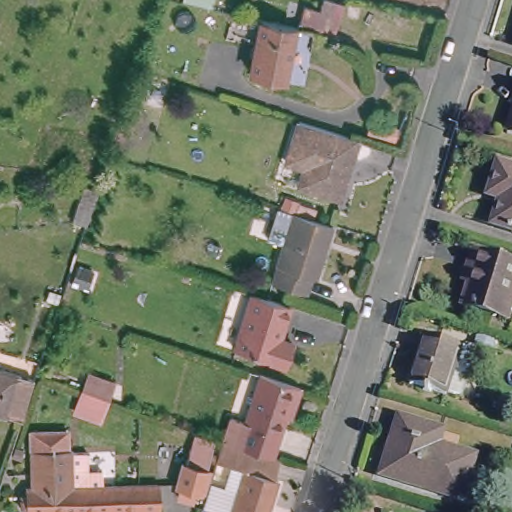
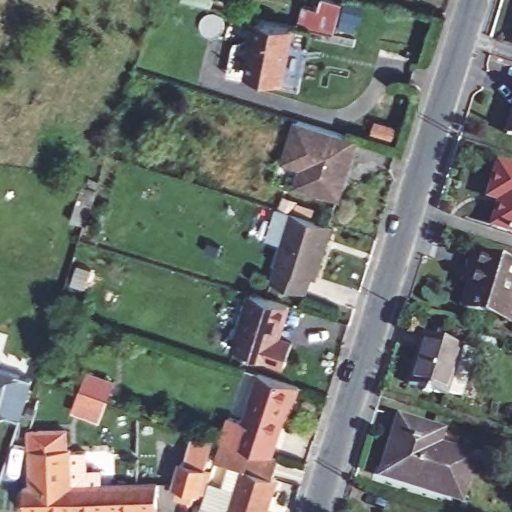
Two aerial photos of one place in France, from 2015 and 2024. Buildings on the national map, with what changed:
unchanged [(253,72),(263,20),(290,25),(295,26),(285,78),(253,72)]
unchanged [(508,111),(512,113),(512,136),(501,133),(508,111)]
unchanged [(303,173),(305,164),(299,161),(288,158),(298,122),(300,118),(310,121),(358,136),(343,186),(341,195),(300,182),(303,173)]
unchanged [(503,196),(490,192),(500,159),(512,163),(512,227),(495,222),(503,196)]
unchanged [(308,270),(303,286),(270,275),(292,207),(328,217),(312,271),(308,270)]
unchanged [(512,263),(512,288),(502,319),(459,306),(470,269),(462,267),(468,249),(512,263)]
unchanged [(72,291),(78,274),(92,279),(85,295),(72,291)]
unchanged [(227,344),(243,287),(257,291),(282,299),(273,333),(285,336),(279,358),(240,347),(227,344)]
unchanged [(438,389),(437,392),(402,380),(416,332),(452,343),(467,347),(463,361),(454,395),(438,389)]
unchanged [(20,372),(36,377),(23,419),(7,414),(0,412),(0,366),(20,372)]
unchanged [(300,401),(293,399),(278,454),(248,446),(240,444),(229,440),(227,439),(233,416),(247,420),(262,370),(305,384),(300,401)]
unchanged [(78,415),(85,393),(90,377),(116,386),(111,402),(105,423),(78,415)]
unchanged [(439,438),(475,449),(462,491),(383,467),(400,410),(443,424),(439,438)]
unchanged [(157,508),(80,512),(22,512),(19,508),(18,494),(23,487),(31,486),(28,431),(50,429),(51,448),(55,448),(55,451),(70,450),(72,471),(87,470),(88,484),(155,482),(157,508)]
unchanged [(278,477),(281,478),(275,500),(212,484),(225,439),(227,439),(229,440),(240,444),(248,446),(278,454),(285,456),(278,477)]
unchanged [(214,452),(203,493),(198,491),(196,499),(182,495),(184,487),(177,485),(185,460),(190,461),(194,445),(214,452)]
unchanged [(207,504),(212,484),(275,500),(272,512),(231,512),(232,511),(207,504)]

